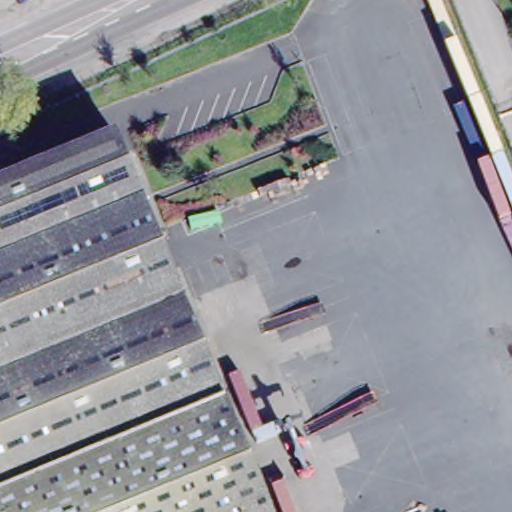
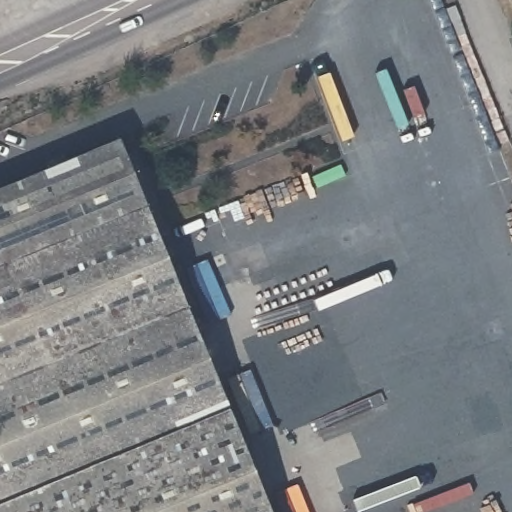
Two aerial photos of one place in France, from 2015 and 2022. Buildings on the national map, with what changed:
unchanged [(274,512),(0,512),(0,184),(119,135),(274,512)]

